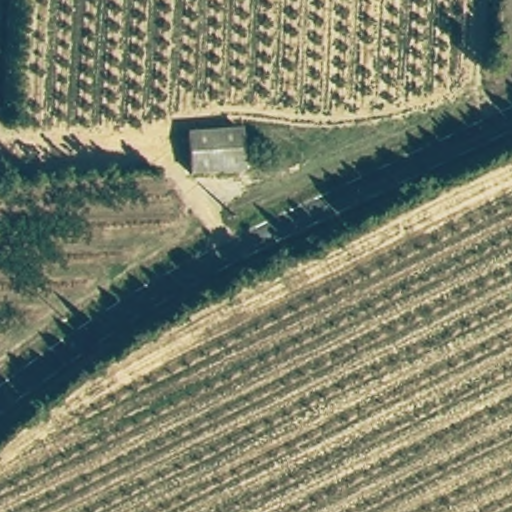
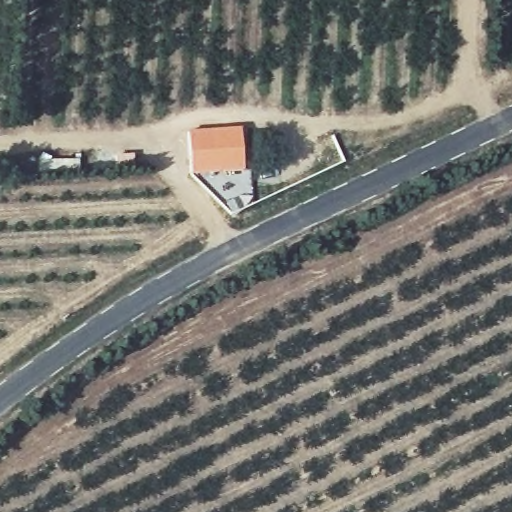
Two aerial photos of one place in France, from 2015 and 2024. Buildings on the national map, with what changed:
unchanged [(245,171),(189,176),(186,131),(241,126),(245,171)]

